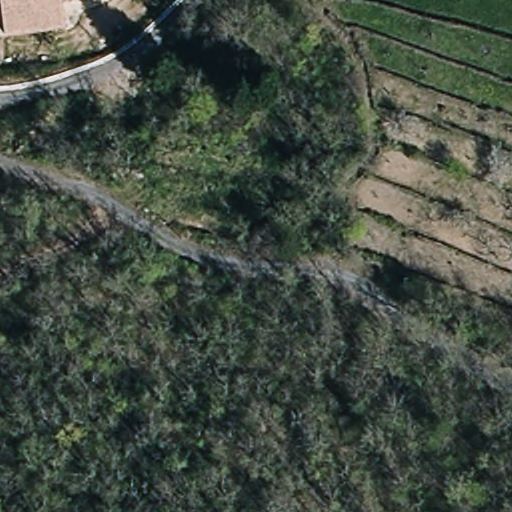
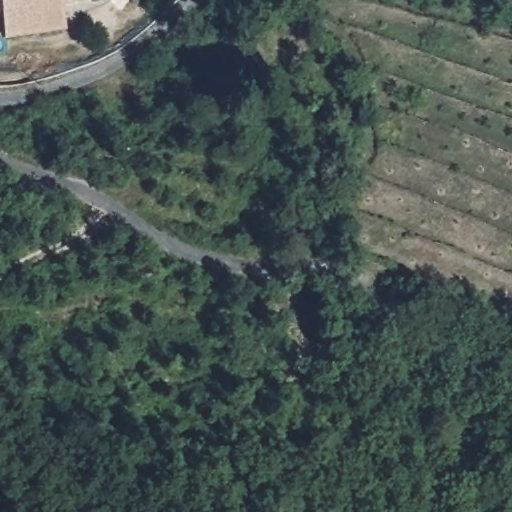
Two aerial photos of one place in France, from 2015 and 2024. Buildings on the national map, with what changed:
unchanged [(57,23),(11,27),(8,0),(55,0),(57,23)]

